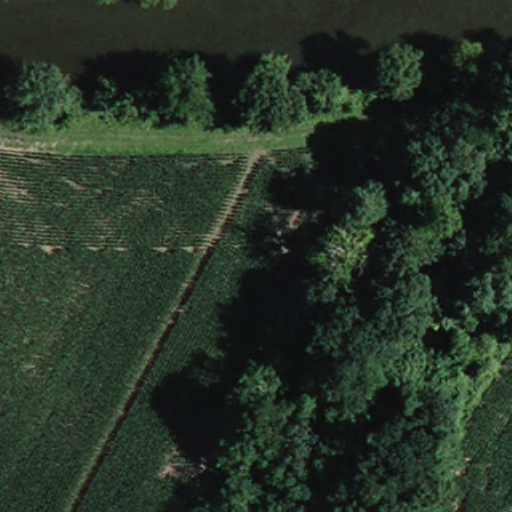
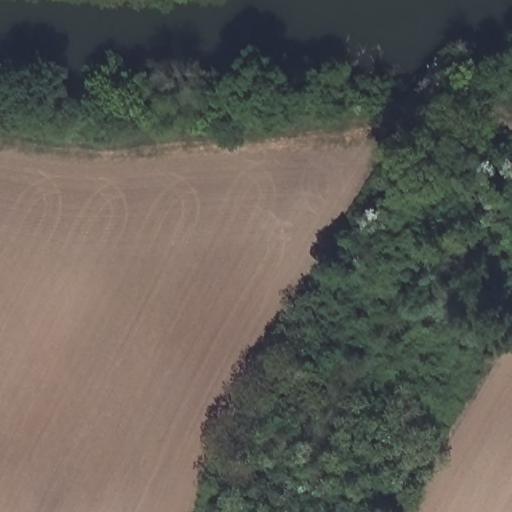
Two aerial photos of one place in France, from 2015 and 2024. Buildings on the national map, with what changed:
[]

